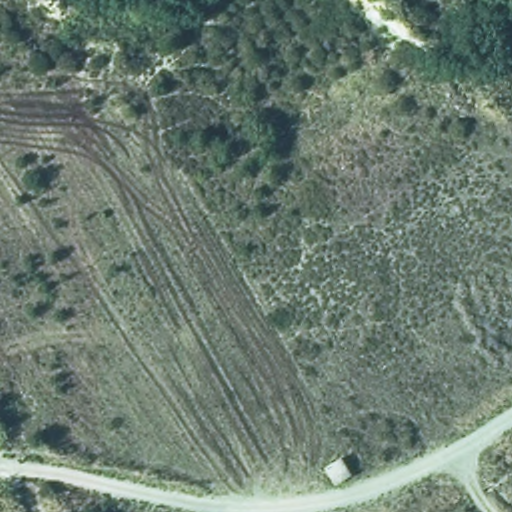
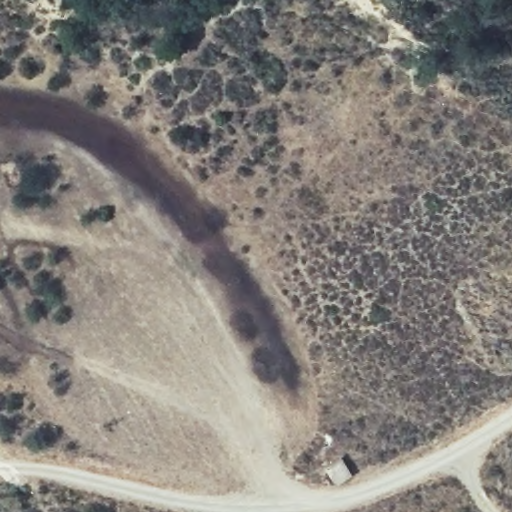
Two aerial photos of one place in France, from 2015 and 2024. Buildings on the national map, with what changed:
unchanged [(342,462),(350,477),(336,486),(329,471),(342,462)]

